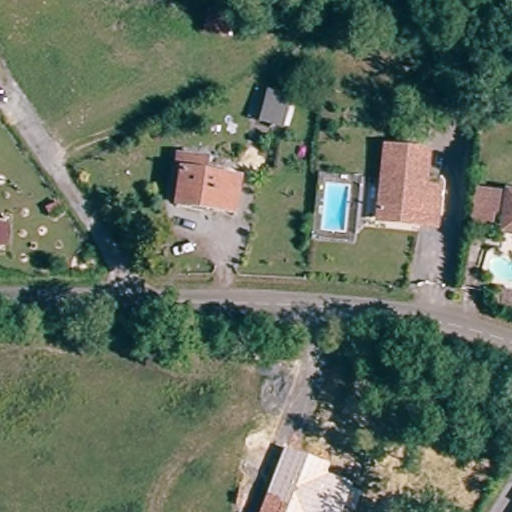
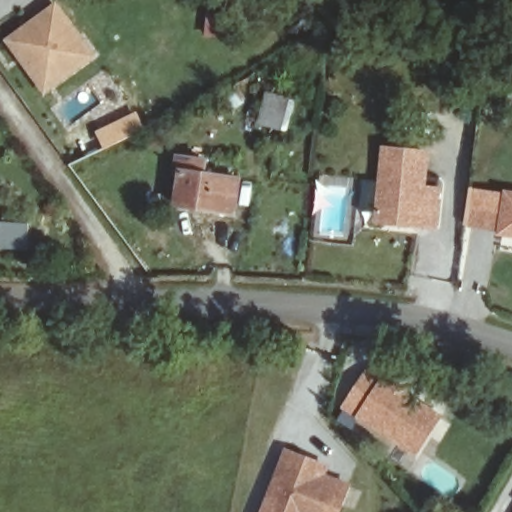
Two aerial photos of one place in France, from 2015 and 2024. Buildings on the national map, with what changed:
new [(97,59),(46,96),(4,41),(56,5),(97,59)]
unchanged [(265,115),(245,110),(250,85),(270,90),(265,115)]
unchanged [(236,210),(179,201),(185,166),(181,165),(184,154),(212,158),(210,170),(242,175),(236,210)]
unchanged [(368,220),(378,155),(420,161),(415,196),(431,199),(425,236),(408,233),(367,227),(368,220)]
new [(469,188),(502,194),(503,190),(512,192),(512,198),(503,196),(496,232),(463,227),(469,188)]
unchanged [(495,235),(503,196),(512,198),(512,239),(498,236),(495,235)]
new [(393,384),(397,378),(417,390),(412,397),(443,416),(420,455),(341,411),(368,368),(393,384)]
unchanged [(330,463),(326,475),(350,483),(340,512),(260,512),(284,446),(330,463)]

